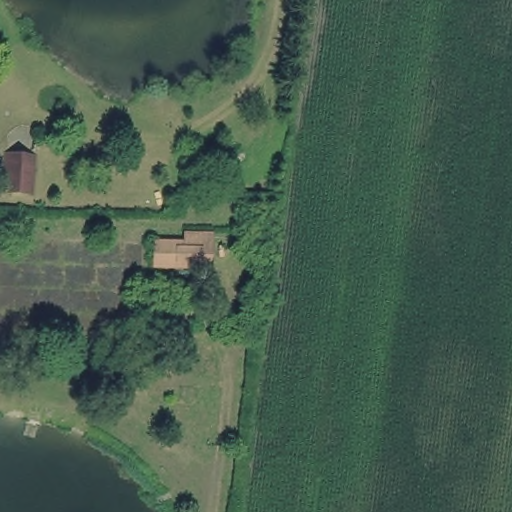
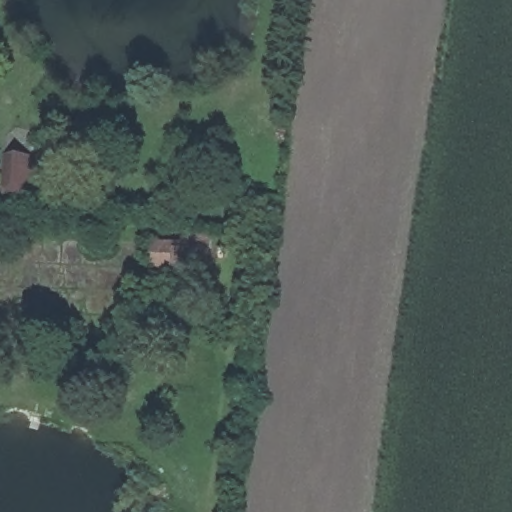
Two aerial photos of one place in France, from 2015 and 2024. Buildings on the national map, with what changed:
unchanged [(3,153),(35,153),(28,199),(7,198),(3,153)]
unchanged [(208,267),(151,268),(151,241),(182,240),(183,228),(211,227),(208,267)]

